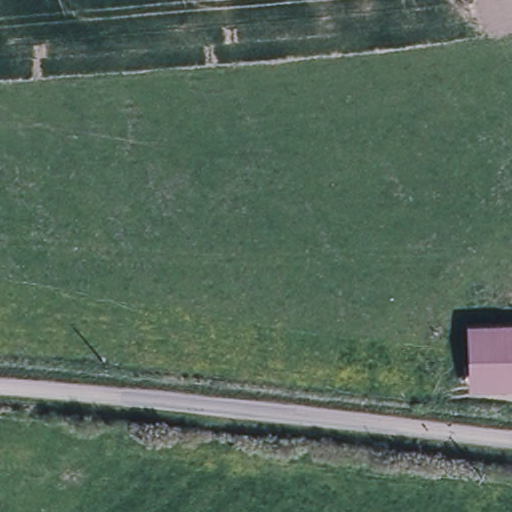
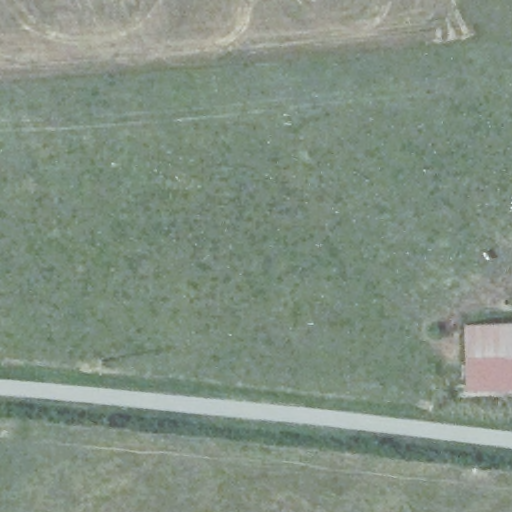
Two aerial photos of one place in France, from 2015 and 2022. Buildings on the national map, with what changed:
unchanged [(467,383),(465,332),(512,331),(512,382),(467,383)]

